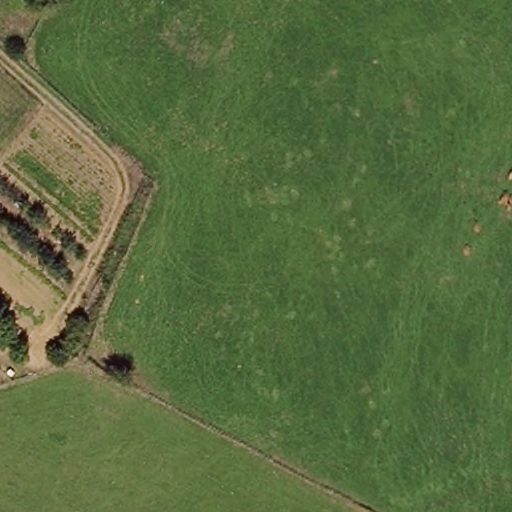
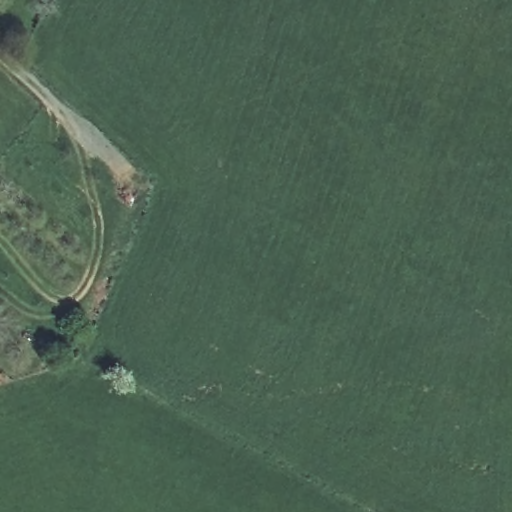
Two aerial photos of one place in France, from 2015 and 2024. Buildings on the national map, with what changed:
[]

